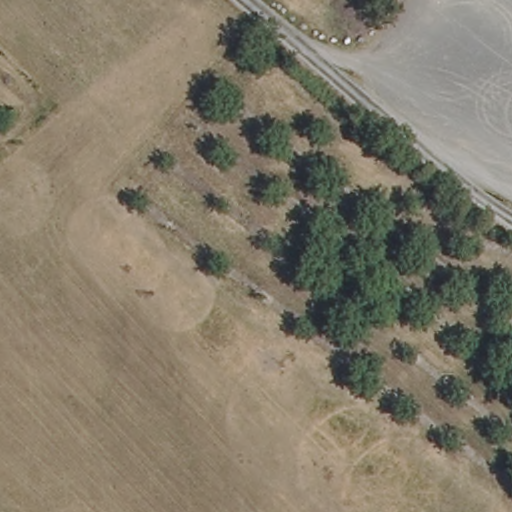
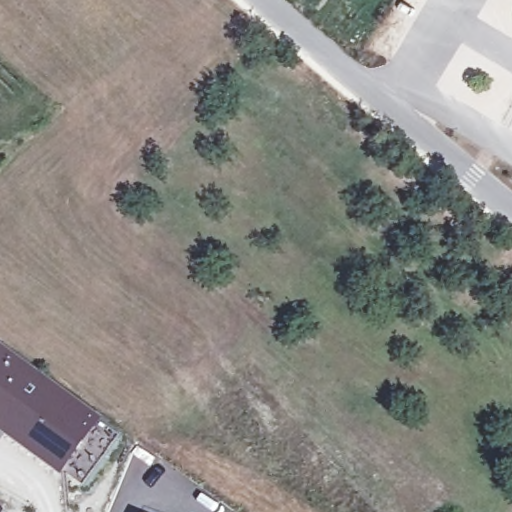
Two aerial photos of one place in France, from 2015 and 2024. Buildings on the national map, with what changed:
new [(103,418),(62,476),(0,430),(0,345),(2,343),(103,418)]
new [(0,512),(0,508),(7,512),(0,512)]

